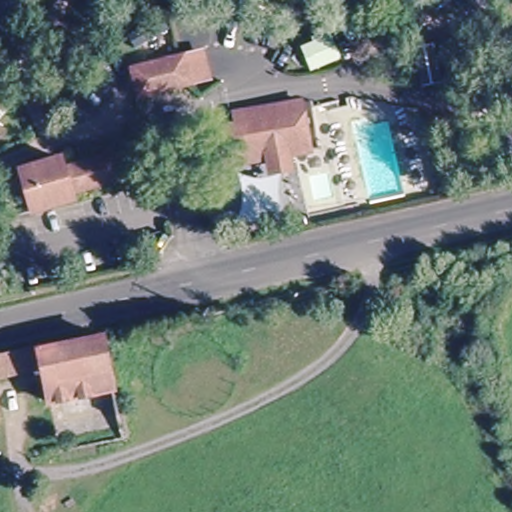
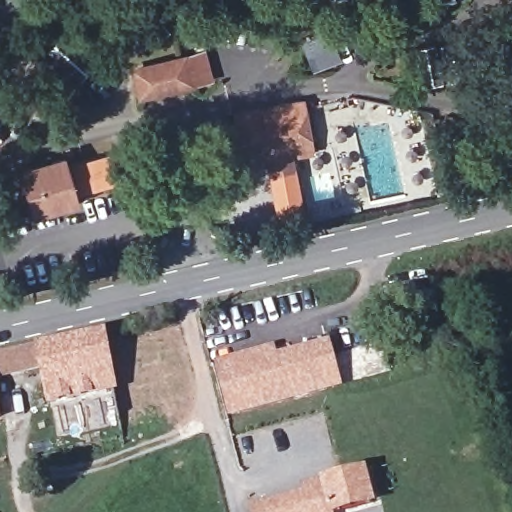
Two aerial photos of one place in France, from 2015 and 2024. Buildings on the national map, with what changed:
unchanged [(129,70),(179,57),(200,51),(208,81),(186,86),(136,100),(129,70)]
unchanged [(309,156),(219,172),(212,135),(234,130),(232,119),(284,109),(299,105),(309,156)]
unchanged [(63,164),(125,147),(131,171),(69,188),(71,199),(28,210),(16,165),(59,154),(63,164)]
unchanged [(102,381),(104,395),(45,409),(39,377),(25,380),(0,387),(0,353),(19,350),(33,347),(96,335),(106,381),(102,381)]
new [(275,355),(330,340),(343,388),(227,420),(213,360),(275,345),(275,355)]
new [(376,504),(349,512),(251,512),(249,506),(304,492),(301,483),(320,478),(322,483),(365,471),(376,504)]

